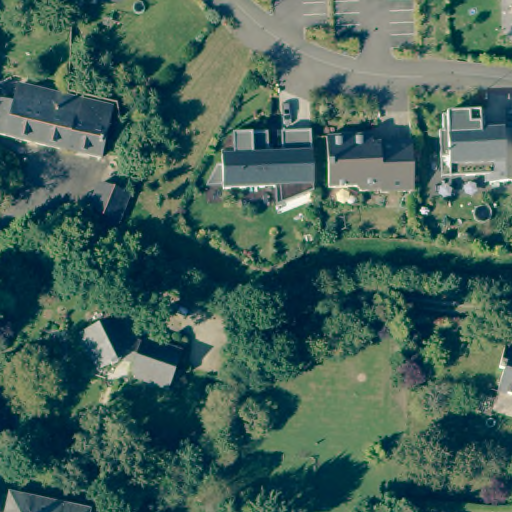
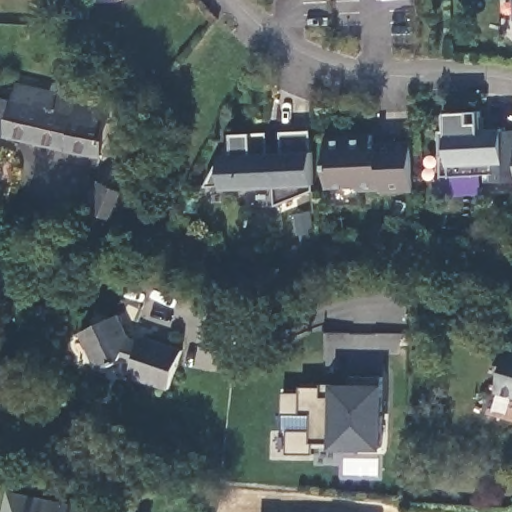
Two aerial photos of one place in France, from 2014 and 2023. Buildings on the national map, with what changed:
unchanged [(20,80),(81,93),(65,144),(0,129),(0,94),(16,98),(20,80)]
unchanged [(114,101),(102,153),(65,144),(81,93),(114,101)]
unchanged [(440,127),(443,127),(443,111),(448,110),(447,108),(480,108),(481,115),(485,115),(485,126),(503,125),(503,127),(512,127),(512,177),(491,178),(490,170),(450,172),(442,173),(441,153),(440,127)]
unchanged [(268,133),(270,154),(283,153),(282,132),(312,130),(312,139),(314,191),(278,206),(277,187),(225,190),(225,187),(208,188),(219,167),(224,167),(223,157),(235,156),(234,135),(268,133)]
unchanged [(412,147),(415,191),(381,193),(381,190),(361,191),(356,187),(329,188),(327,137),(372,135),(372,152),(379,151),(379,144),(412,142),(412,147)]
unchanged [(111,235),(81,222),(100,175),(131,186),(111,235)]
unchanged [(113,366),(112,363),(102,366),(94,364),(79,330),(116,312),(126,334),(125,340),(139,343),(140,339),(150,337),(184,347),(172,386),(137,376),(132,369),(135,362),(122,359),(119,360),(121,363),(113,366)]
unchanged [(496,390),(502,370),(498,369),(503,349),(512,352),(512,395),(496,390)]
new [(313,455),(287,454),(288,430),(311,431),(312,416),(282,415),(283,392),(301,393),(301,387),(323,387),(323,385),(349,385),(350,378),(382,379),(380,449),(354,449),(313,447),(313,455)]
unchanged [(2,443),(2,445),(0,445),(0,404),(9,405),(2,443)]
unchanged [(90,512),(6,512),(10,495),(91,511),(90,512)]

